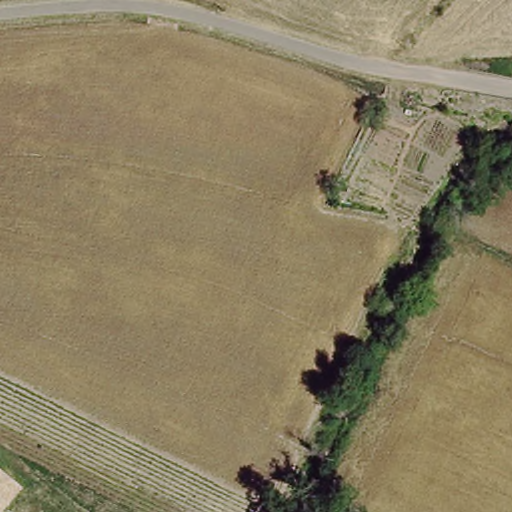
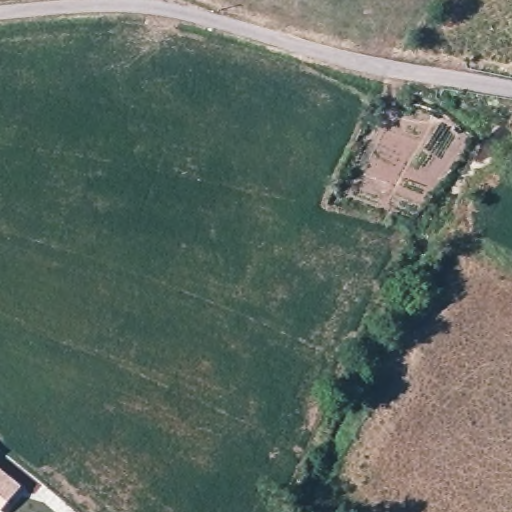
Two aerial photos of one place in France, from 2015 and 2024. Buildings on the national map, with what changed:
unchanged [(22,487),(2,512),(0,512),(0,469),(22,487)]

